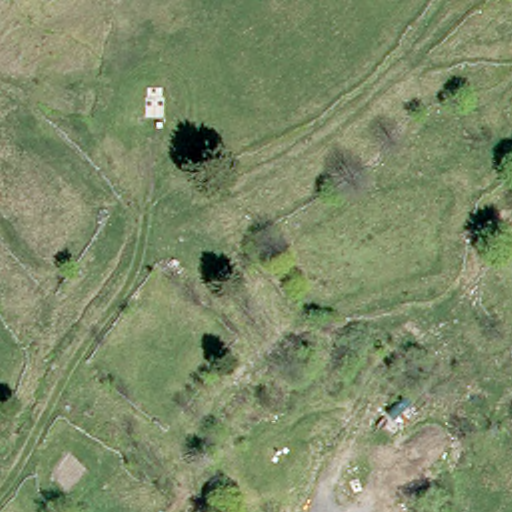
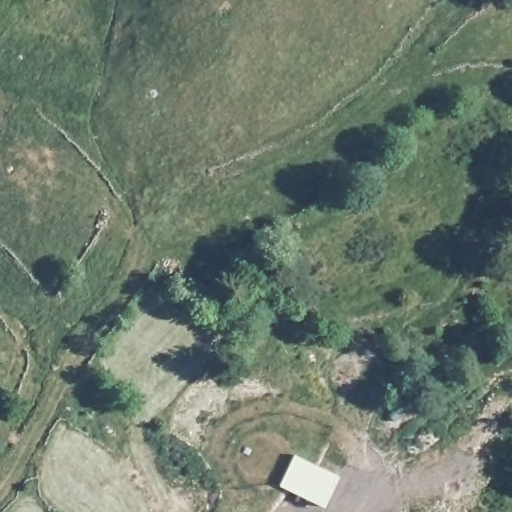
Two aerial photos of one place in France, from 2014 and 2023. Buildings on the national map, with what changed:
unchanged [(162,114),(147,112),(149,90),(164,91),(162,114)]
new [(279,485),(294,453),(339,475),(324,507),(279,485)]

